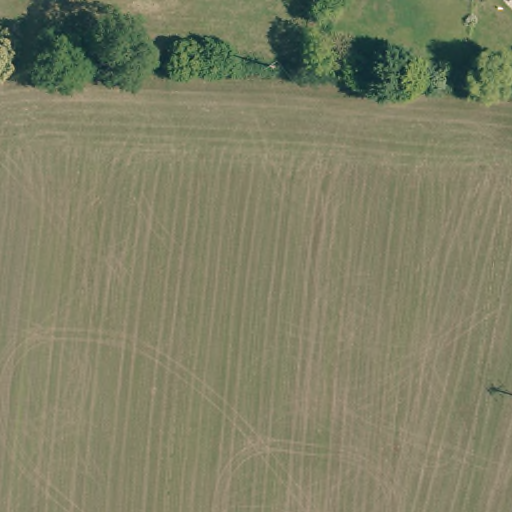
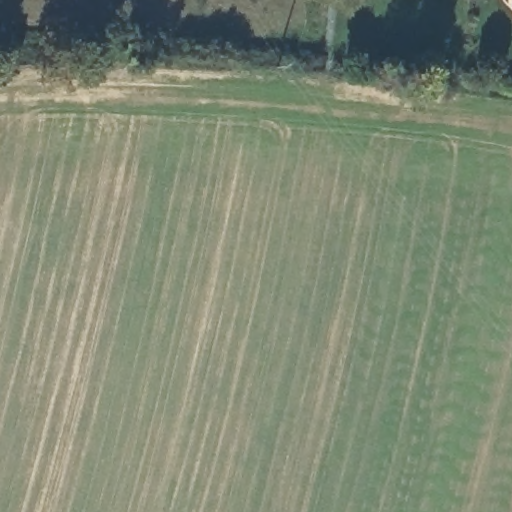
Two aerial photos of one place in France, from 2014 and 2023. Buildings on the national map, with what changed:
[]

